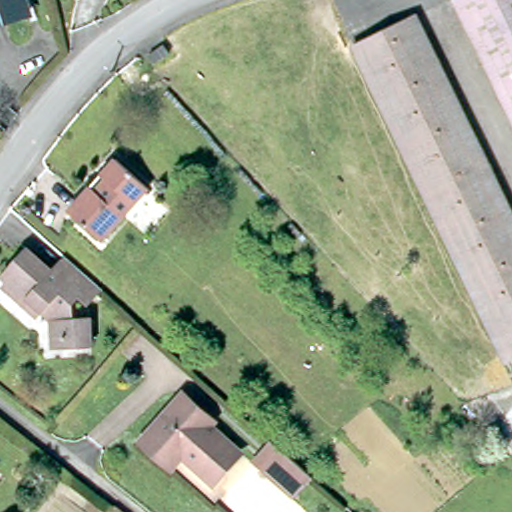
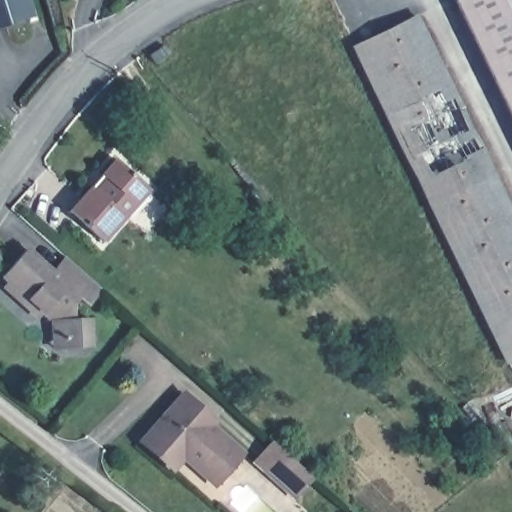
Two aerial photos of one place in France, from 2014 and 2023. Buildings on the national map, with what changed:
unchanged [(30,14),(0,24),(0,0),(26,0),(30,14)]
unchanged [(512,113),(457,0),(512,0),(512,113)]
unchanged [(512,213),(512,361),(509,362),(355,46),(416,17),(512,213)]
unchanged [(171,50),(158,61),(152,53),(165,43),(171,50)]
unchanged [(118,160),(150,189),(105,240),(72,211),(93,186),(97,190),(107,180),(103,177),(118,160)]
unchanged [(55,325),(58,325),(56,323),(48,315),(44,320),(27,306),(7,288),(10,285),(2,278),(27,249),(53,271),(68,255),(93,278),(105,289),(90,304),(83,297),(77,303),(75,315),(77,320),(92,319),(93,344),(67,345),(55,345),(55,338),(55,325)]
unchanged [(158,453),(144,442),(185,395),(200,408),(213,420),(208,425),(242,453),(217,481),(185,452),(173,465),(158,453)]
unchanged [(257,462),(275,442),(312,475),(295,495),(257,462)]

